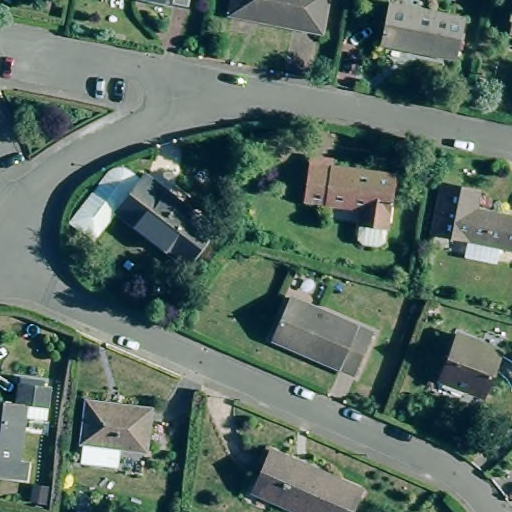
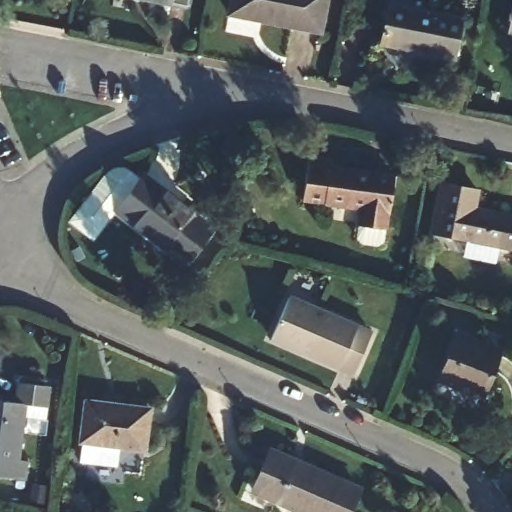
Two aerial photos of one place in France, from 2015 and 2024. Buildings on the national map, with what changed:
unchanged [(154,0),(189,0),(187,6),(154,0)]
unchanged [(327,0),(320,33),(230,14),(233,0),(327,0)]
unchanged [(390,4),(462,19),(454,58),(382,44),(390,4)]
unchanged [(508,22),(510,14),(512,14),(512,32),(508,31),(510,22),(508,22)]
unchanged [(310,157),(331,160),(330,168),(393,177),(384,243),(377,247),(362,245),(356,239),(360,210),(303,202),(310,157)]
unchanged [(96,239),(75,224),(118,168),(119,167),(120,166),(121,166),(122,165),(123,165),(124,165),(125,165),(126,165),(127,165),(127,166),(128,166),(129,166),(143,178),(145,174),(213,227),(187,261),(119,209),(96,239)]
unchanged [(427,228),(437,179),(472,185),(468,204),(512,213),(512,244),(494,241),(490,259),(458,252),(462,234),(427,228)]
unchanged [(288,298),(372,333),(355,374),(271,339),(288,298)]
unchanged [(457,334),(500,351),(482,396),(440,379),(457,334)]
unchanged [(27,462),(25,481),(0,477),(0,401),(15,403),(17,383),(18,383),(19,379),(36,381),(35,385),(50,387),(47,409),(45,421),(23,418),(17,461),(27,462)]
unchanged [(79,457),(82,437),(87,396),(150,404),(145,445),(118,442),(116,462),(79,457)]
unchanged [(270,451),(295,462),(294,465),(339,484),(340,481),(359,489),(349,512),(299,512),(252,492),(270,451)]

